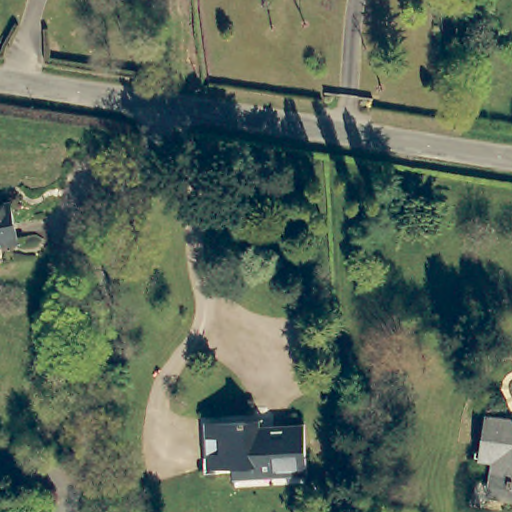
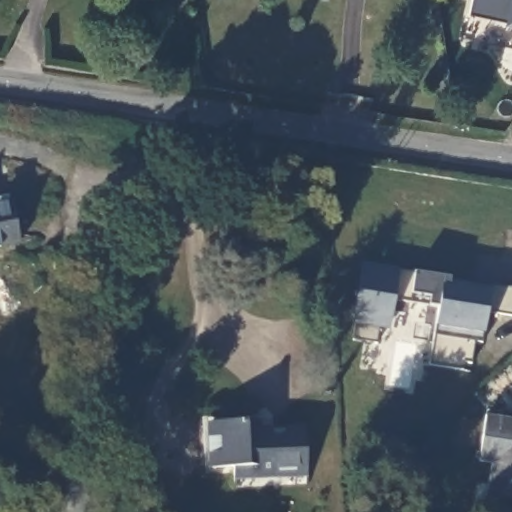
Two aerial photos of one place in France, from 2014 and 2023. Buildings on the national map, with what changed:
new [(463,12),(466,0),(512,0),(512,23),(463,12)]
unchanged [(0,206),(15,203),(22,241),(0,245),(0,206)]
new [(489,307),(488,312),(483,335),(482,342),(473,341),(472,362),(463,360),(462,368),(430,363),(438,303),(428,305),(429,301),(396,296),(394,298),(390,330),(377,327),(377,341),(354,338),(356,325),(351,323),(362,264),(398,271),(413,273),(450,278),(450,282),(491,288),(490,285),(492,285),(512,288),(512,314),(489,307)]
unchanged [(305,463),(233,468),(233,462),(208,463),(210,432),(222,433),(223,412),(252,414),(252,423),(302,420),(305,463)]
unchanged [(484,492),(492,460),(479,456),(488,414),(512,416),(512,417),(512,498),(484,492)]

